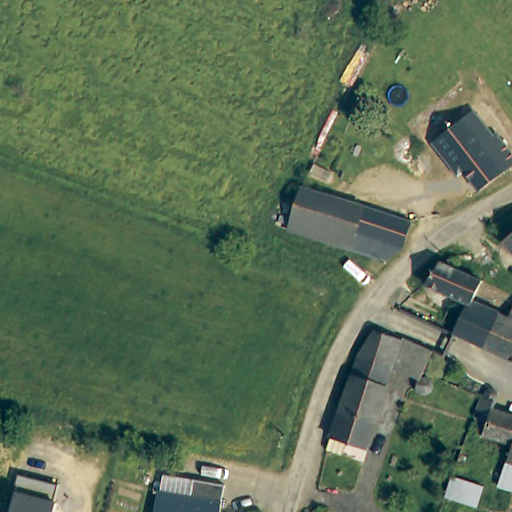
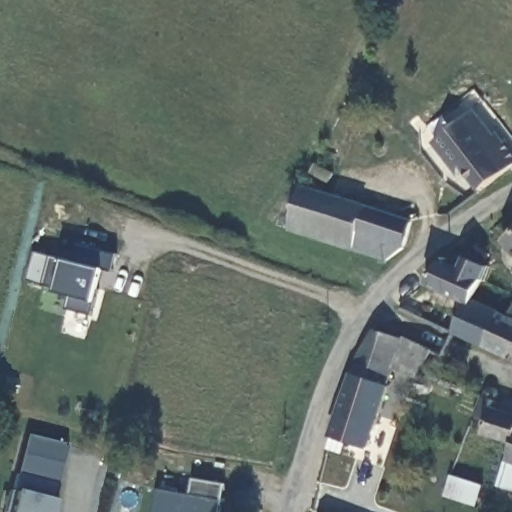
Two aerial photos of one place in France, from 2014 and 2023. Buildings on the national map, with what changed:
unchanged [(432,140),(474,107),(493,132),(497,129),(512,146),(512,163),(479,188),(464,169),(459,172),(452,165),(432,140)]
unchanged [(351,251),(288,230),(301,184),(323,192),(367,207),(351,251)]
unchanged [(412,223),(403,252),(388,262),(351,251),(367,207),(412,223)]
unchanged [(512,236),(512,252),(503,245),(512,236)]
new [(112,272),(101,270),(93,302),(91,315),(66,310),(69,296),(55,292),(56,290),(42,286),(50,257),(64,261),(73,263),(78,245),(116,255),(112,272)]
unchanged [(438,262),(441,263),(483,280),(481,285),(478,292),(474,301),(470,308),(466,307),(426,290),(438,262)]
unchanged [(470,308),(474,301),(509,317),(512,311),(512,361),(453,334),(466,307),(470,308)]
unchanged [(330,436),(327,435),(352,357),(372,330),(413,347),(416,342),(430,350),(418,372),(392,361),(380,392),(385,393),(364,448),(345,441),(343,446),(338,456),(325,448),(329,438),(330,436)]
unchanged [(484,438),(474,433),(481,417),(477,416),(484,400),(486,394),(503,401),(501,408),(512,412),(512,451),(511,453),(483,441),(484,438)]
new [(28,435),(66,444),(57,486),(19,477),(28,435)]
unchanged [(512,451),(512,493),(495,488),(511,453),(512,451)]
unchanged [(160,476),(223,485),(218,512),(154,512),(160,476)]
unchanged [(15,491),(19,477),(57,486),(55,501),(52,512),(10,512),(15,491)]
unchanged [(451,479),(479,488),(473,506),(446,496),(451,479)]

